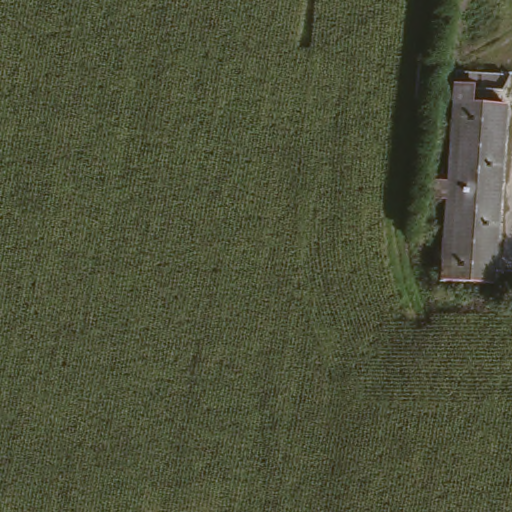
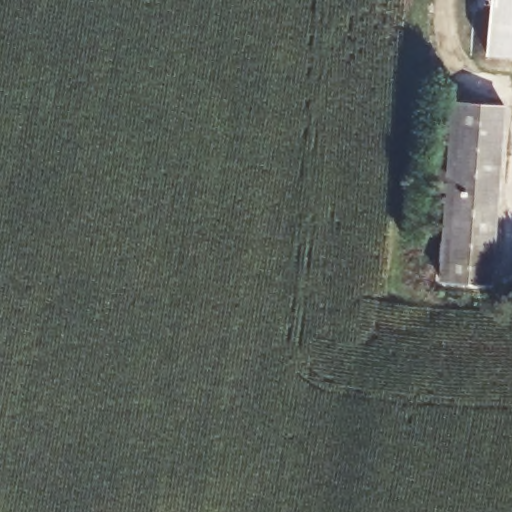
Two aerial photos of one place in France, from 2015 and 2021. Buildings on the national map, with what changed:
new [(494,0),(512,0),(512,56),(488,53),(494,0)]
unchanged [(431,187),(444,188),(451,87),(472,90),(471,105),(502,108),(489,290),(437,286),(443,204),(429,203),(431,187)]

